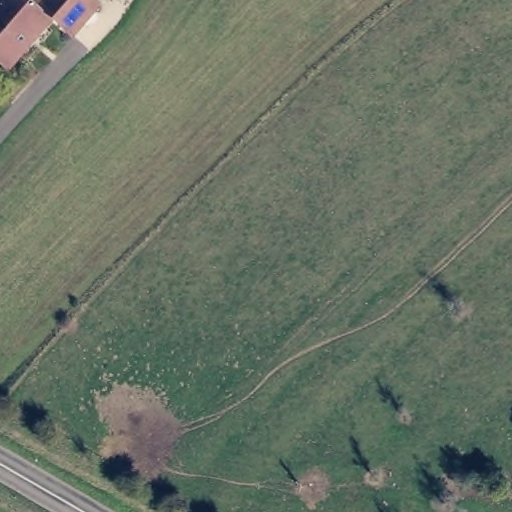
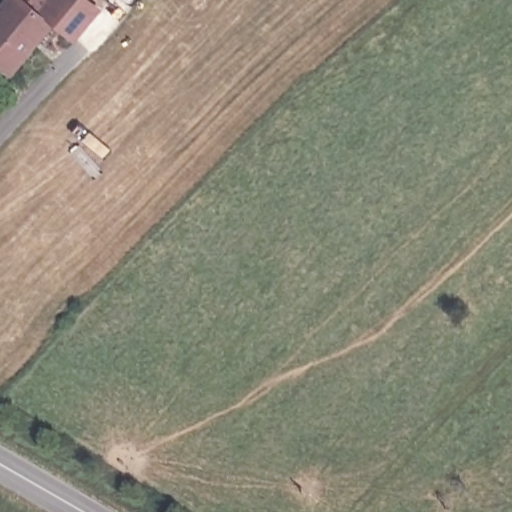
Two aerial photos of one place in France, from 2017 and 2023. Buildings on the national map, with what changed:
unchanged [(94,0),(100,5),(76,37),(55,25),(11,75),(0,67),(0,2),(2,0),(94,0)]
unchanged [(66,400),(75,425),(44,433),(37,411),(66,400)]
unchanged [(98,450),(111,458),(106,466),(94,458),(98,450)]

